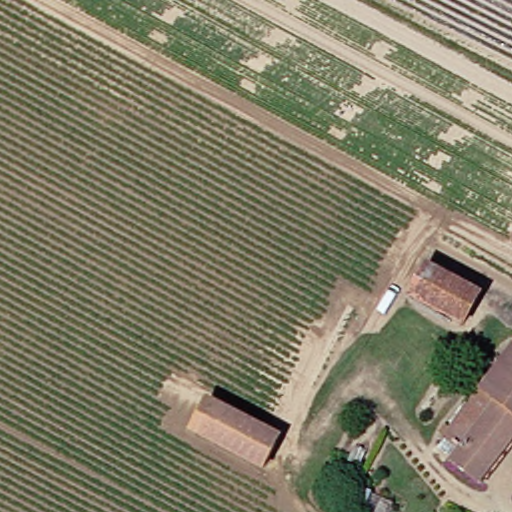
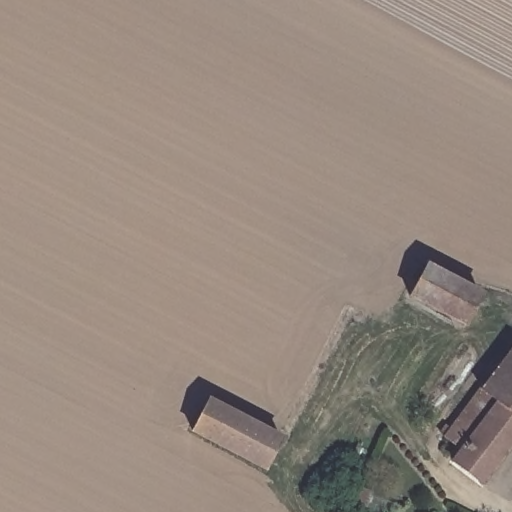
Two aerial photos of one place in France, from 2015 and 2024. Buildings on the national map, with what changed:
unchanged [(466,322),(410,295),(428,261),(485,289),(466,322)]
unchanged [(512,347),(512,438),(492,466),(447,436),(511,346),(512,347)]
unchanged [(268,470),(194,428),(212,396),(285,433),(268,470)]

